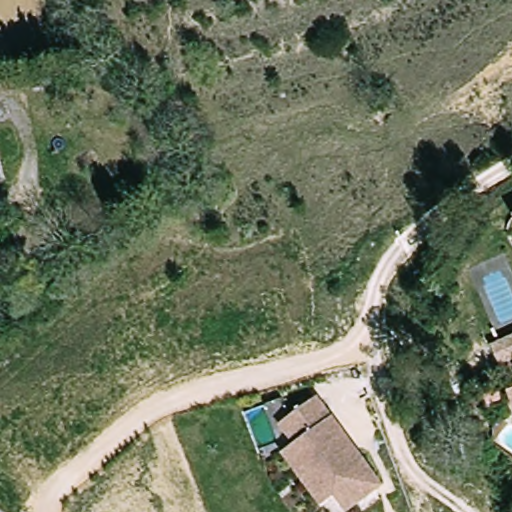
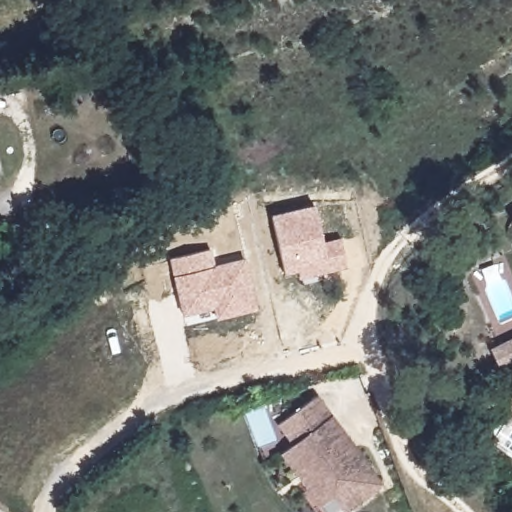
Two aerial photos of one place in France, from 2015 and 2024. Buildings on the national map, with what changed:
new [(348,268),(299,278),(297,271),(284,273),(271,215),(315,205),(324,241),(340,236),(348,268)]
new [(245,257),(257,309),(217,319),(213,308),(182,315),(173,276),(170,257),(211,248),(215,264),(245,257)]
unchanged [(512,338),(512,361),(500,368),(490,350),(512,338)]
unchanged [(381,487),(348,512),(342,512),(334,501),(293,446),(278,426),(315,399),(381,487)]
new [(485,437),(499,415),(509,404),(512,403),(512,457),(485,437)]
unchanged [(293,446),(334,501),(322,510),(281,455),(293,446)]

